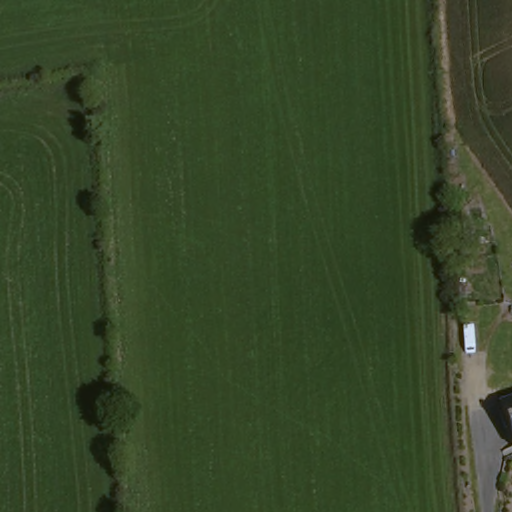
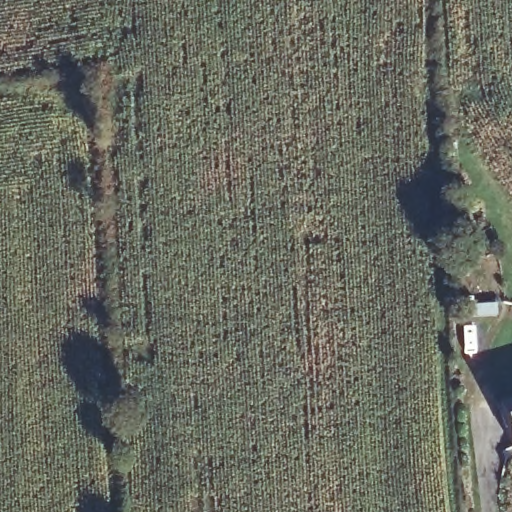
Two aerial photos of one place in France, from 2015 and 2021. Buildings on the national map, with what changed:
unchanged [(512,448),(508,450),(496,412),(512,406),(512,448)]

